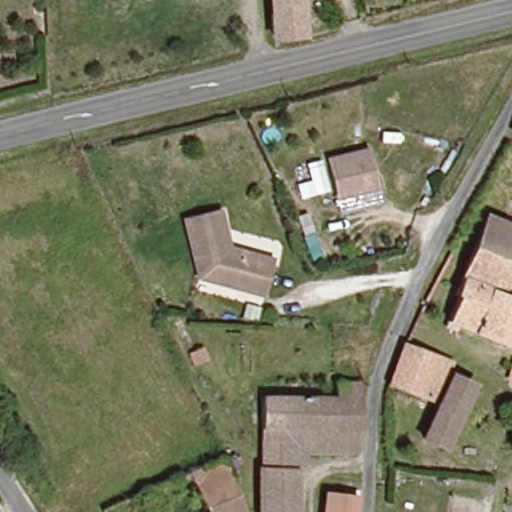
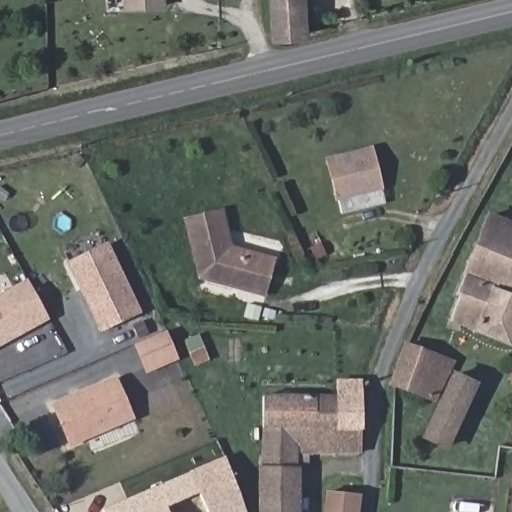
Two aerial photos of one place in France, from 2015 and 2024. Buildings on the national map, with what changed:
new [(124,9),(124,0),(166,0),(166,8),(124,9)]
unchanged [(281,34),(279,0),(308,0),(310,34),(281,34)]
unchanged [(377,186),(335,197),(326,159),(325,155),(367,146),(377,186)]
unchanged [(268,263),(260,295),(196,278),(180,216),(217,205),(228,244),(270,255),(268,263)]
unchanged [(502,221),(512,225),(512,335),(510,342),(449,316),(476,249),(488,254),(502,221)]
new [(109,244),(141,315),(99,334),(67,264),(109,244)]
new [(51,323),(0,349),(0,298),(29,283),(51,323)]
new [(166,333),(177,362),(148,374),(136,347),(166,333)]
unchanged [(406,342),(457,362),(450,378),(441,396),(391,379),(406,342)]
unchanged [(506,371),(512,355),(512,373),(506,371)]
new [(121,377),(135,419),(68,443),(54,406),(121,377)]
unchanged [(295,455),(295,512),(261,512),(261,395),(314,396),(339,397),(339,388),(340,380),(339,377),(363,380),(362,389),(361,433),(361,455),(295,455)]
unchanged [(441,396),(450,378),(478,392),(451,452),(421,439),(441,396)]
new [(104,510),(227,456),(247,512),(207,512),(202,497),(167,512),(104,512),(104,510)]
demolished [(127,503),(219,463),(233,512),(105,512),(127,503)]
unchanged [(328,487),(355,490),(352,512),(325,512),(328,487)]

